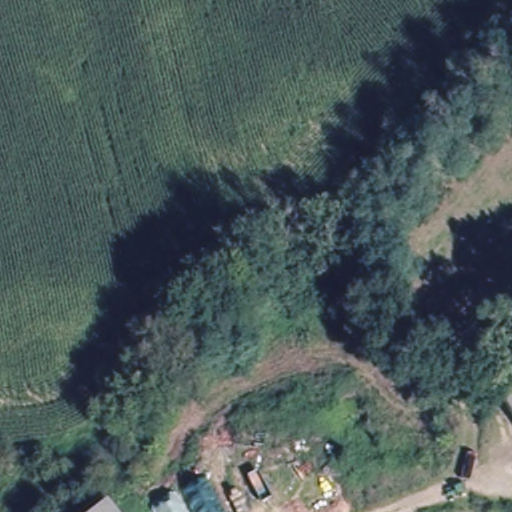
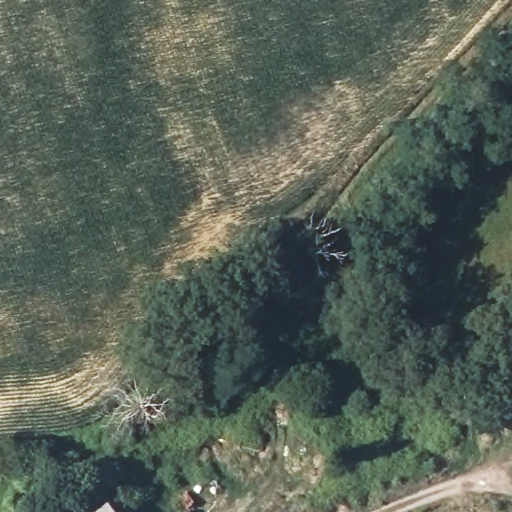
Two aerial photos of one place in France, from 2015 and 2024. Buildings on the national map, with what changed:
unchanged [(512,422),(498,402),(512,393),(512,422)]
unchanged [(109,512),(91,512),(102,503),(109,512)]

